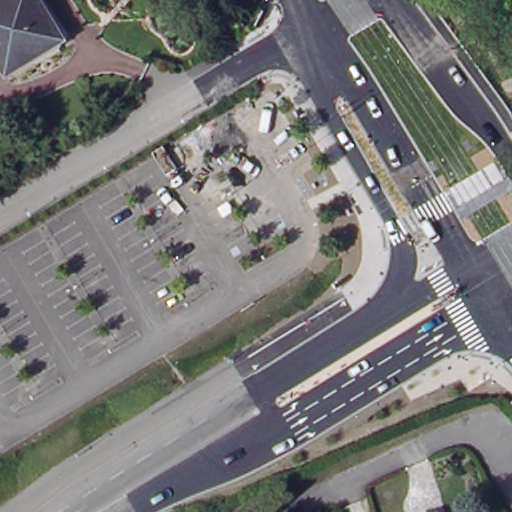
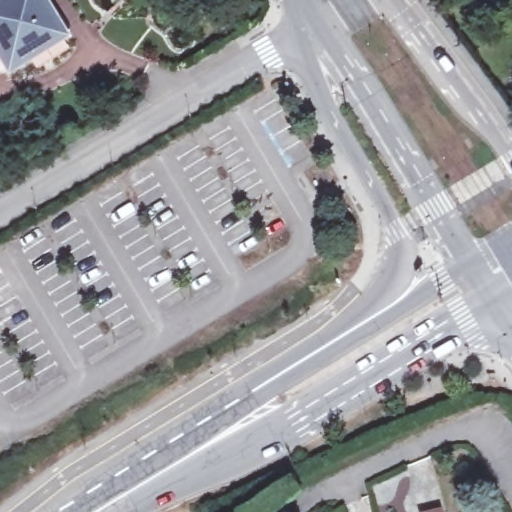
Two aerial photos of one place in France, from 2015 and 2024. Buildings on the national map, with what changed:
unchanged [(18,0),(50,0),(70,34),(35,56),(38,62),(21,72),(21,71),(12,77),(0,58),(0,11),(18,0)]

